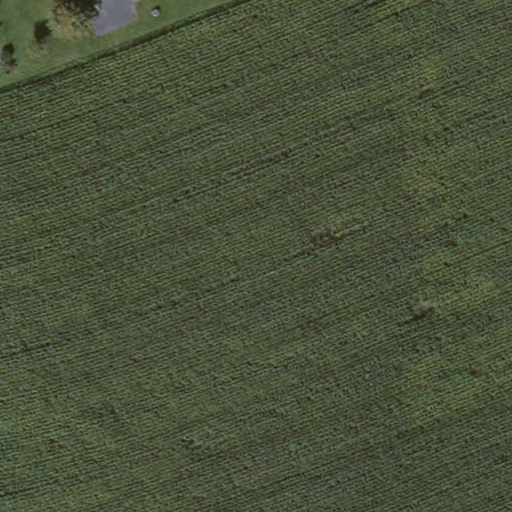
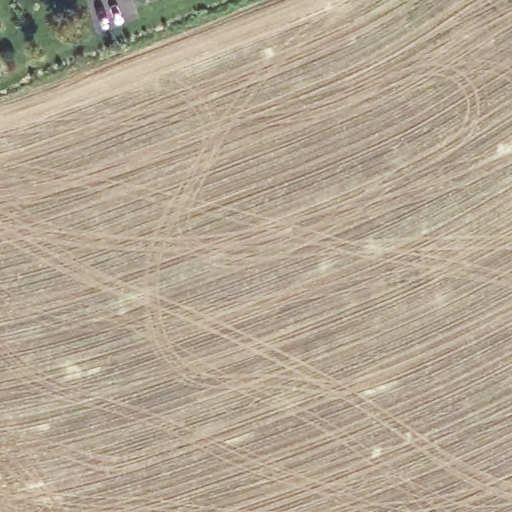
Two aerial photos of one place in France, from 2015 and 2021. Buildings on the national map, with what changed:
unchanged [(125,15),(122,0),(162,0),(163,6),(125,15)]

